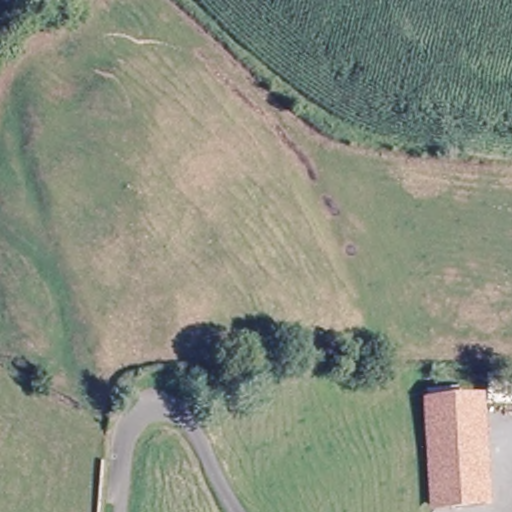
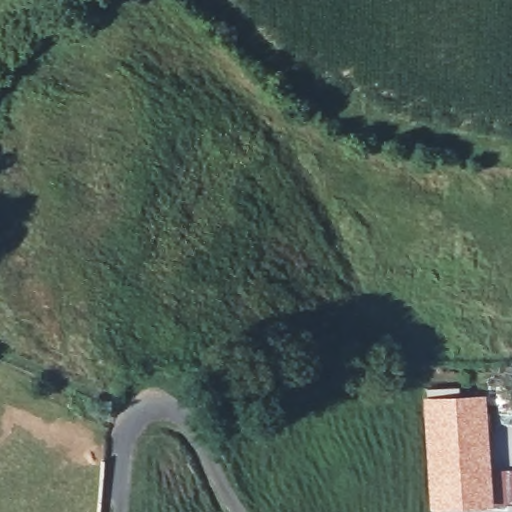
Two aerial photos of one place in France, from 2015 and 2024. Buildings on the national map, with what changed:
unchanged [(480,405),(487,507),(434,511),(427,395),(458,393),(459,406),(480,405)]

